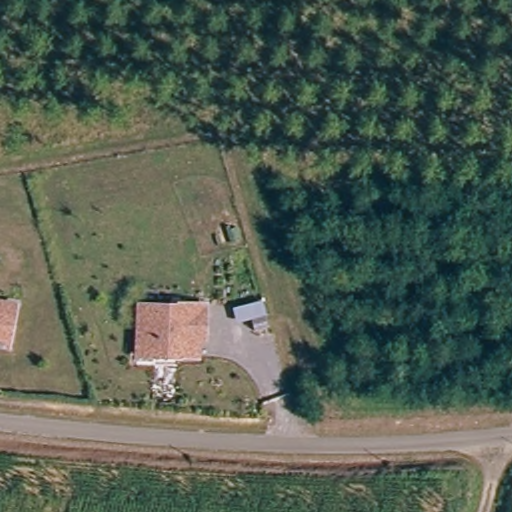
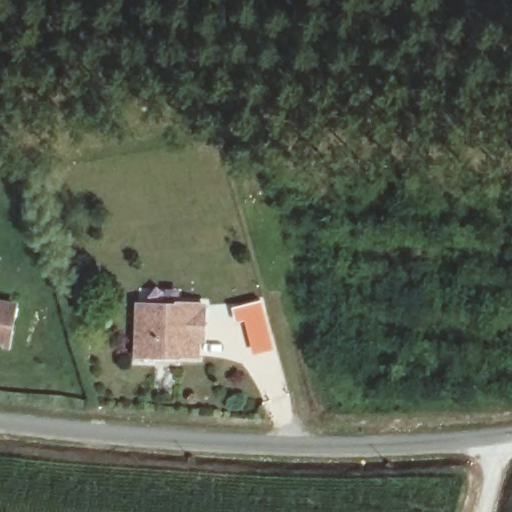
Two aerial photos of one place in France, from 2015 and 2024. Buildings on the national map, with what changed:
unchanged [(9,346),(0,344),(0,302),(18,306),(9,346)]
unchanged [(137,348),(140,305),(180,308),(180,306),(206,307),(204,328),(203,342),(198,342),(197,358),(178,357),(178,358),(153,357),(136,355),(137,348)]
unchanged [(270,320),(258,323),(254,311),(267,307),(270,320)]

